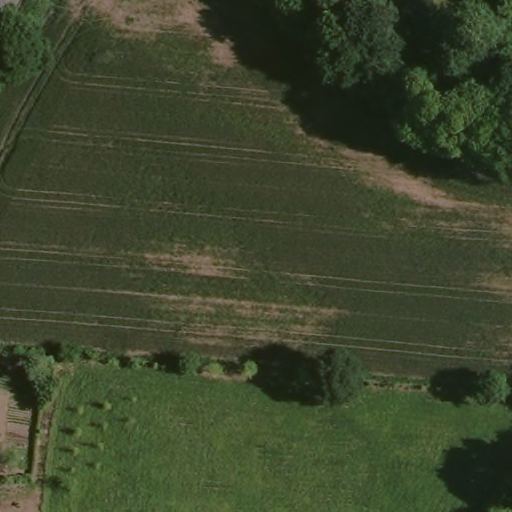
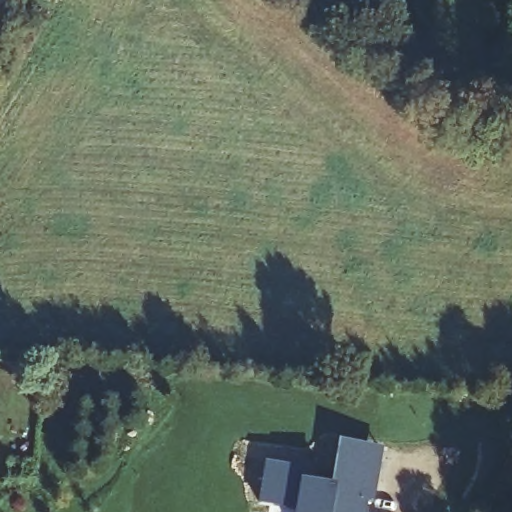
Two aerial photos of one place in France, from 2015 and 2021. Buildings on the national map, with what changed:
new [(377,461),(370,501),(354,497),(352,512),(297,512),(298,506),(261,502),(268,462),(305,468),(303,482),(333,488),(339,456),(377,461)]

